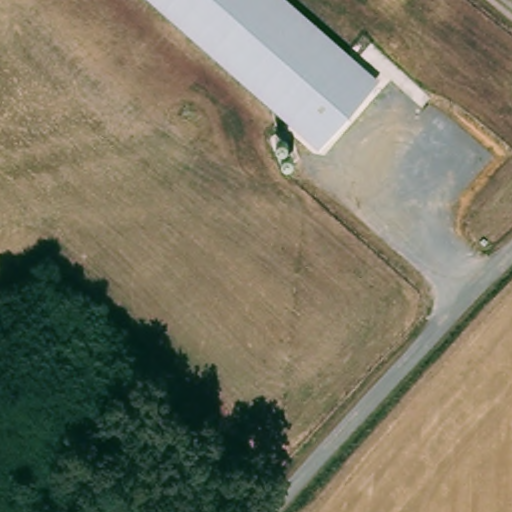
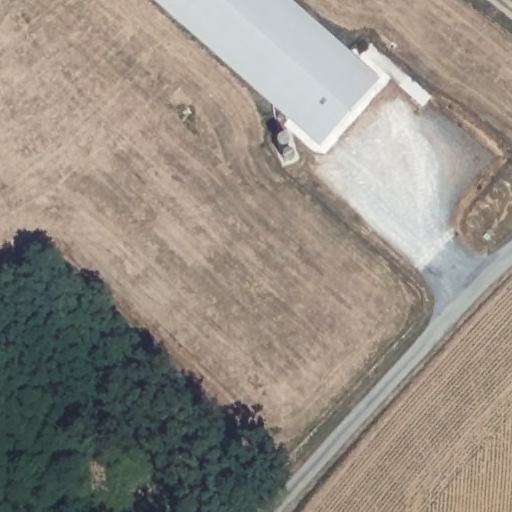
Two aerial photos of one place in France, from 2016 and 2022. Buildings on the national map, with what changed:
unchanged [(318,148),(152,0),(290,0),(379,78),(318,148)]

